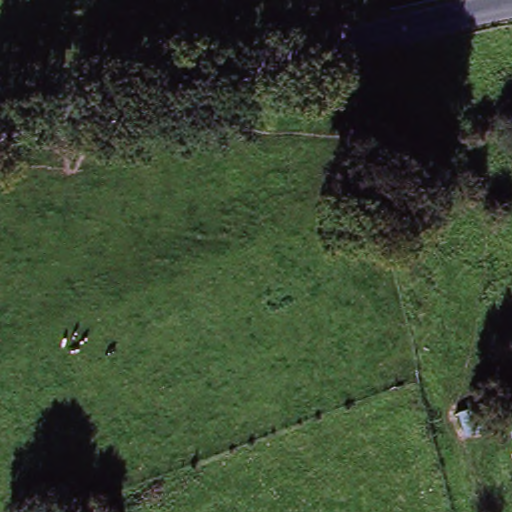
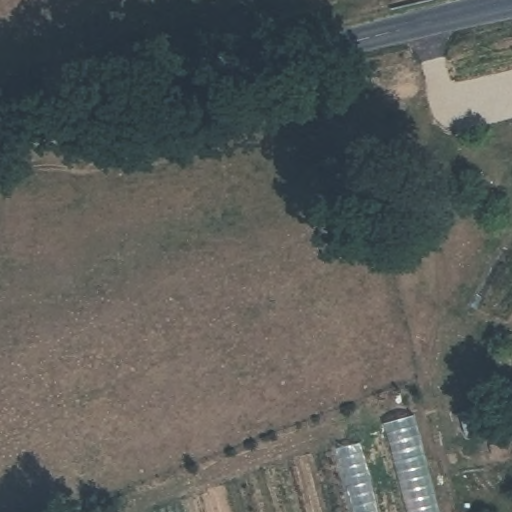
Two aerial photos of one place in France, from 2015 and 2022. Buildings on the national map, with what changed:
new [(438,512),(407,512),(386,424),(414,418),(438,512)]
new [(380,512),(350,512),(333,450),(362,444),(380,512)]

